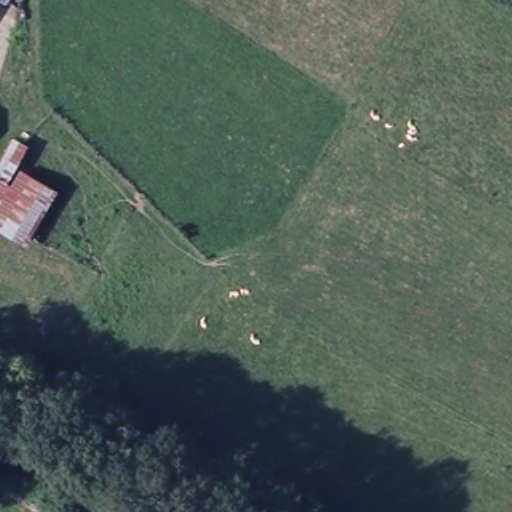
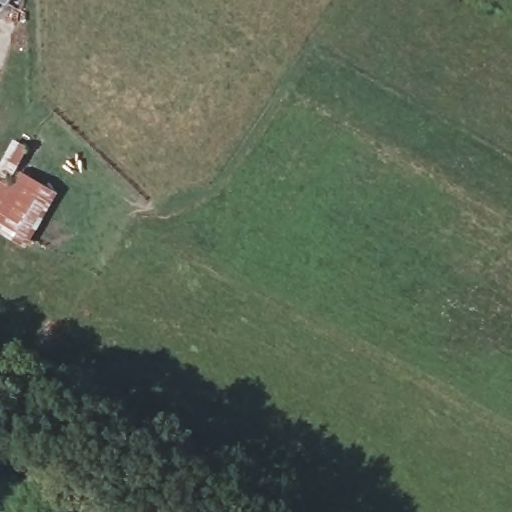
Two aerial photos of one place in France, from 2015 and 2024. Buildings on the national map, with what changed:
unchanged [(7,0),(0,13),(0,0),(7,0)]
unchanged [(0,210),(0,168),(14,142),(31,149),(19,176),(0,210)]
unchanged [(57,198),(26,254),(0,238),(0,210),(19,176),(57,198)]

